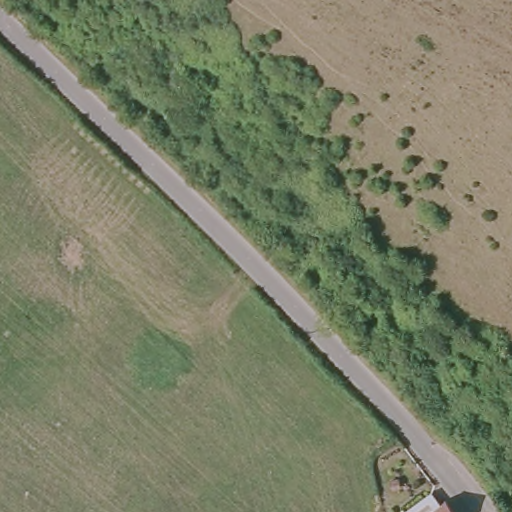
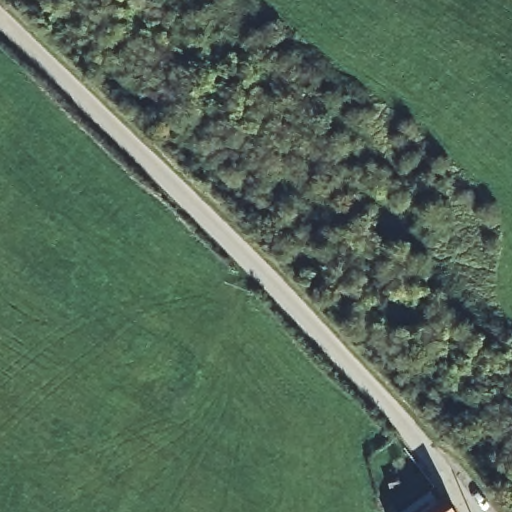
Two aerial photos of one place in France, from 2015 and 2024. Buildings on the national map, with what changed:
unchanged [(430,498),(435,495),(449,512),(385,512),(419,486),(430,498)]

